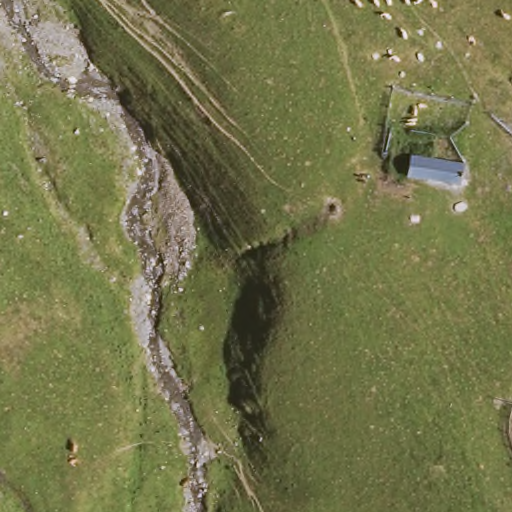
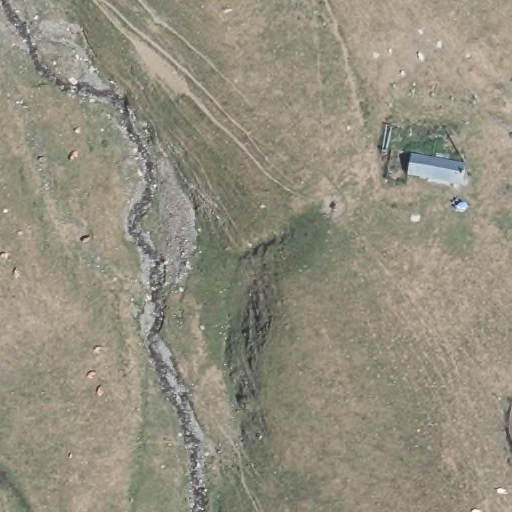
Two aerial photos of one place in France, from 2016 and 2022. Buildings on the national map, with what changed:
unchanged [(411,177),(415,153),(472,161),(469,186),(411,177)]

